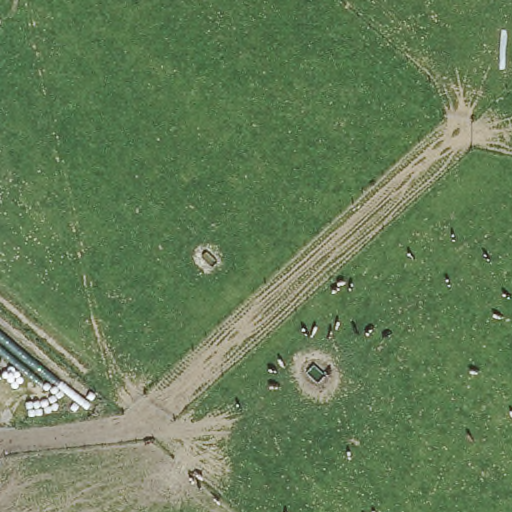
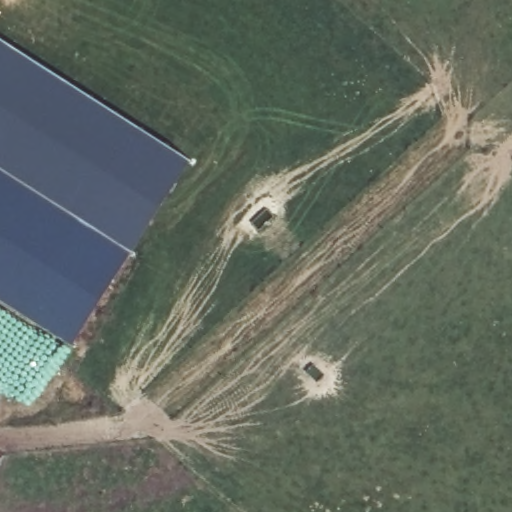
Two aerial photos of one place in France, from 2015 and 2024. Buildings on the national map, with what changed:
new [(191,161),(73,347),(0,300),(0,39),(191,161)]

